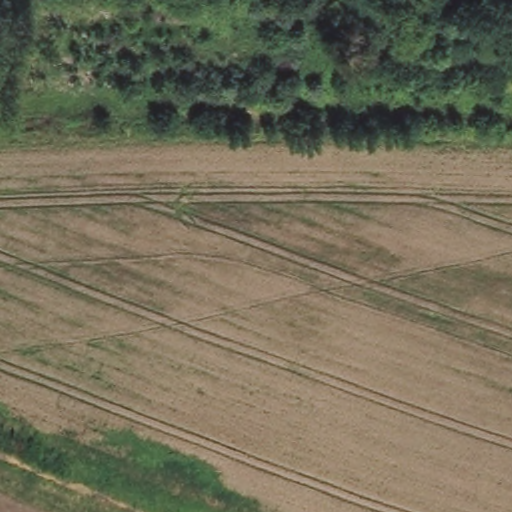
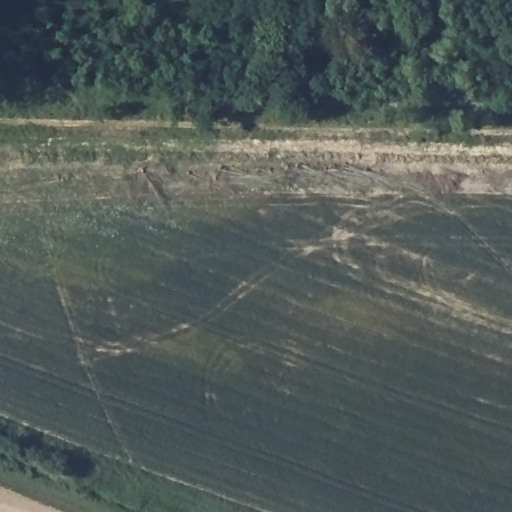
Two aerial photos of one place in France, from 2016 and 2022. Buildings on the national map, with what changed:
[]

